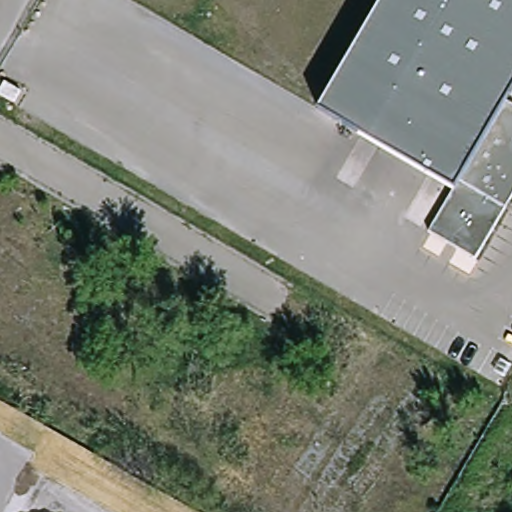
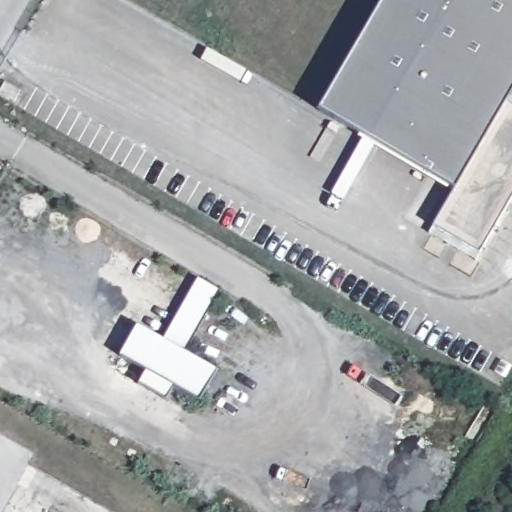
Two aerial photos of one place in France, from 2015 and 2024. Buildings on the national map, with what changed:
unchanged [(460,193),(324,114),(389,0),(512,0),(512,104),(512,105),(512,209),(485,257),(481,264),(434,237),(438,230),(460,193)]
unchanged [(0,86),(3,80),(20,89),(13,101),(0,94),(0,86)]
new [(148,371),(121,355),(138,327),(163,340),(198,280),(218,292),(184,352),(218,372),(199,402),(173,387),(165,398),(141,384),(148,371)]

